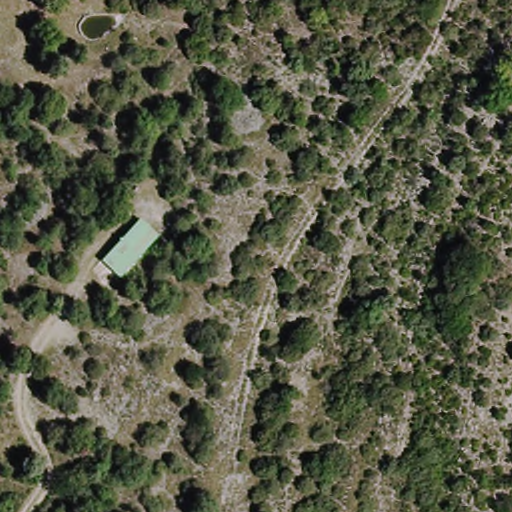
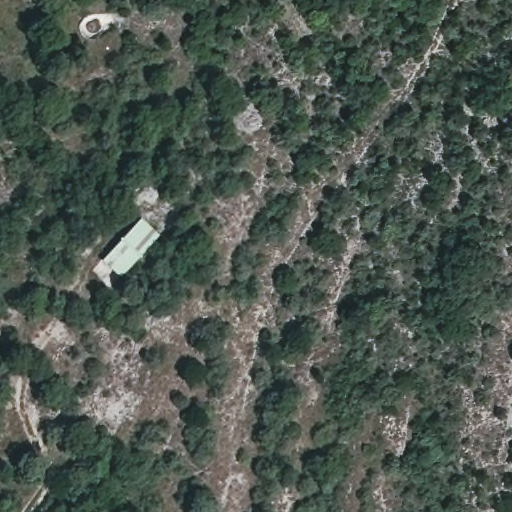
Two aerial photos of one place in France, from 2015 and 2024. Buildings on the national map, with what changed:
unchanged [(158,230),(122,270),(105,256),(142,215),(158,230)]

